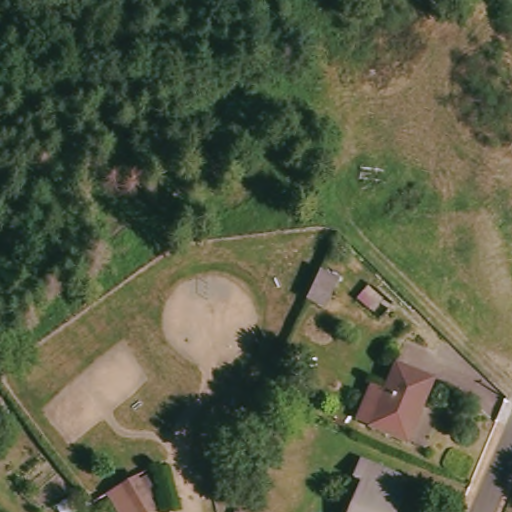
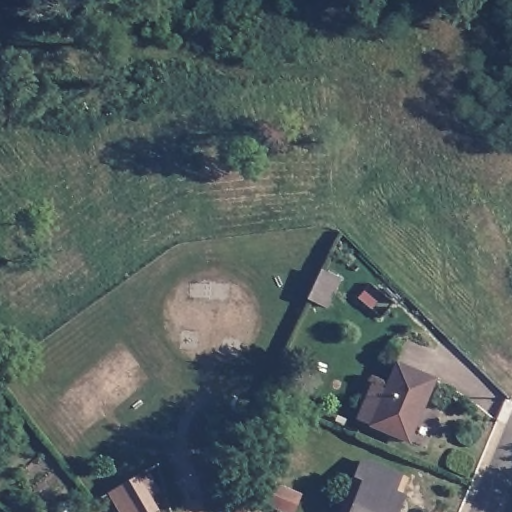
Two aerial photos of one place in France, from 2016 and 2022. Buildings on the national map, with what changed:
unchanged [(319,280),(341,289),(330,316),(306,307),(319,280)]
unchanged [(388,364),(424,380),(411,412),(405,410),(390,440),(361,426),(388,364)]
unchanged [(348,474),(355,457),(390,470),(384,487),(393,491),(385,512),(342,512),(355,477),(348,474)]
unchanged [(156,512),(120,512),(113,499),(124,492),(140,483),(156,512)]

